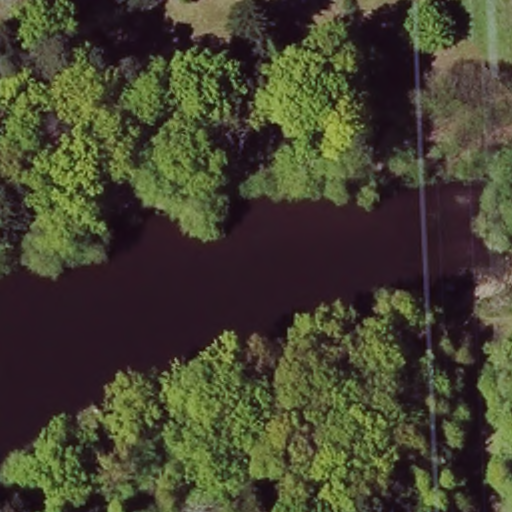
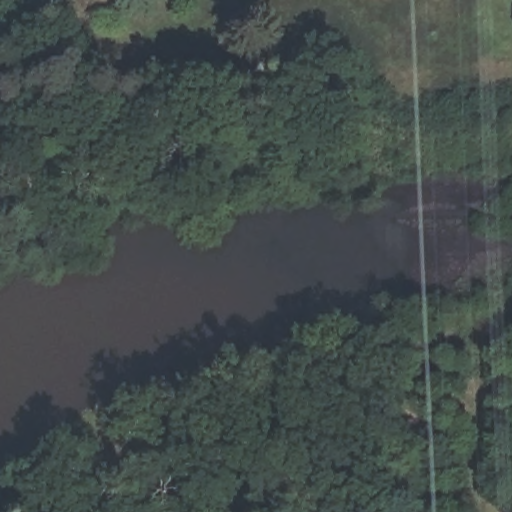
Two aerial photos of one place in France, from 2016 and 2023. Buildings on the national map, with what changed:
[]

